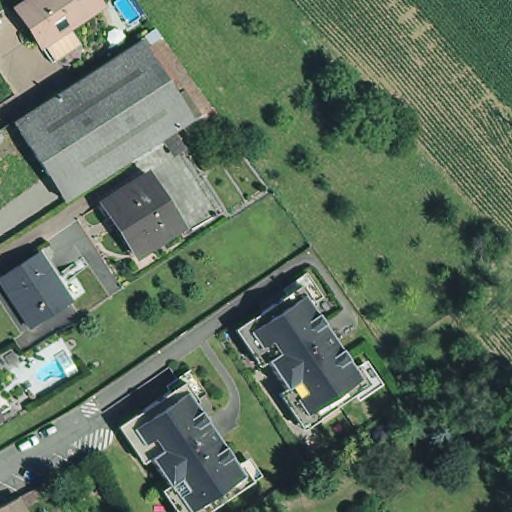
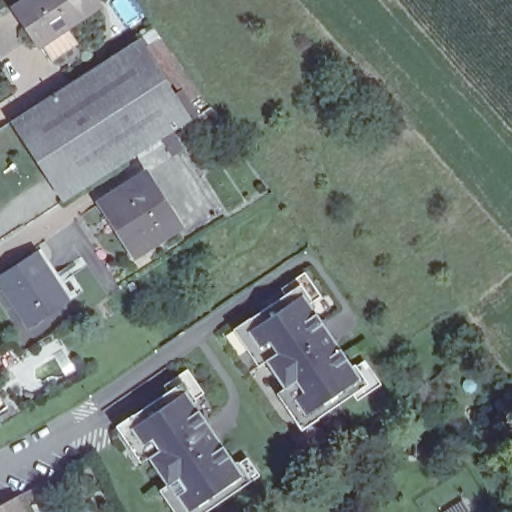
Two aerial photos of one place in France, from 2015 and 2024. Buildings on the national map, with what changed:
unchanged [(93,2),(62,25),(72,40),(46,59),(9,6),(17,0),(92,0),(93,2)]
unchanged [(192,142),(179,124),(60,202),(10,121),(152,24),(221,119),(192,142)]
unchanged [(177,222),(132,252),(98,199),(143,170),(177,222)]
unchanged [(32,326),(0,279),(0,278),(39,252),(72,299),(32,326)]
unchanged [(310,308),(307,311),(349,371),(353,370),(364,387),(314,421),(309,412),(301,417),(284,393),(281,394),(262,367),(264,365),(247,338),(254,332),(247,324),(298,289),(310,308)]
unchanged [(198,512),(196,510),(193,512),(187,512),(172,490),(170,491),(150,462),(151,461),(134,437),(142,430),(136,420),(185,386),(197,405),(196,407),(237,468),(240,467),(252,483),(212,512),(198,512)]
unchanged [(1,412),(0,415),(0,388),(12,406),(1,412)]
unchanged [(16,512),(0,512),(0,507),(10,502),(16,512)]

